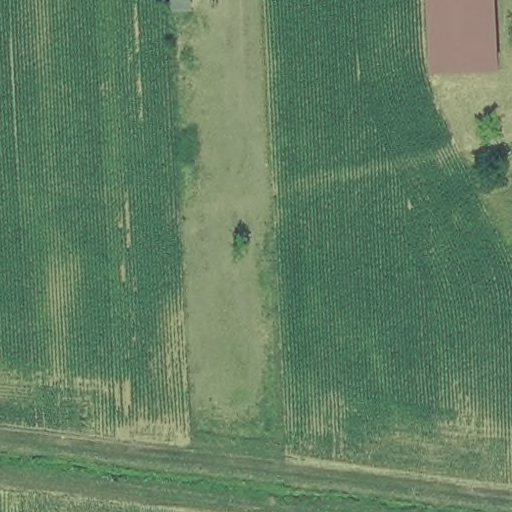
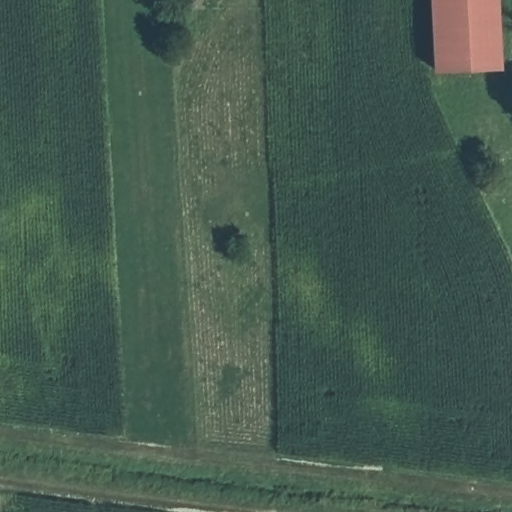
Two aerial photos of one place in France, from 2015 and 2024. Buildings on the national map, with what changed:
unchanged [(200,15),(186,10),(185,0),(201,0),(200,15)]
unchanged [(506,65),(440,69),(436,0),(502,0),(506,65)]

